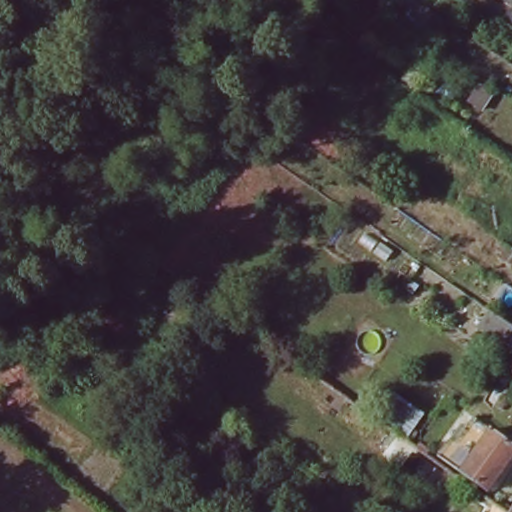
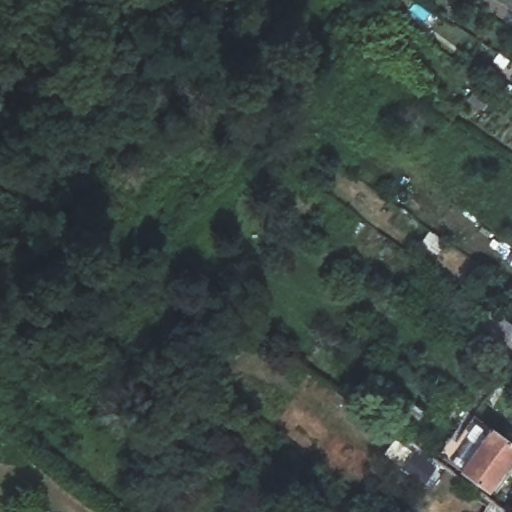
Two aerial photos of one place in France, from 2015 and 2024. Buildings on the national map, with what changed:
unchanged [(512,254),(512,262),(508,260),(512,254)]
unchanged [(490,288),(479,280),(483,274),(494,282),(512,294),(512,312),(486,295),(490,288)]
unchanged [(501,347),(475,329),(487,312),(512,329),(512,353),(502,346),(501,347)]
unchanged [(512,368),(512,373),(509,372),(512,368)]
unchanged [(391,394),(422,417),(406,439),(374,417),(391,394)]
unchanged [(428,454),(461,409),(484,427),(451,470),(428,454)]
unchanged [(485,426),(512,445),(512,453),(482,494),(451,471),(451,470),(484,427),(485,426)]
unchanged [(476,495),(499,512),(467,512),(476,495)]
unchanged [(512,512),(504,512),(512,501),(512,512)]

